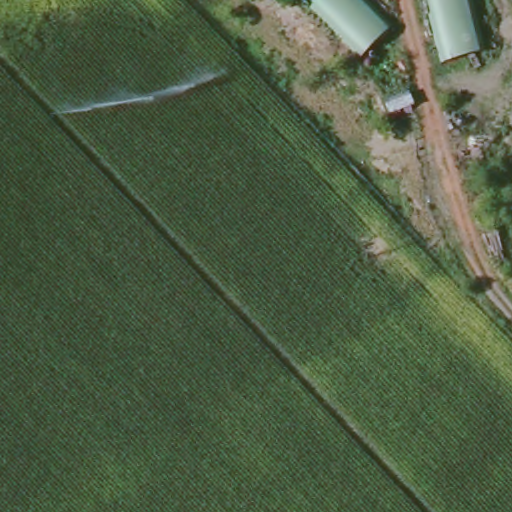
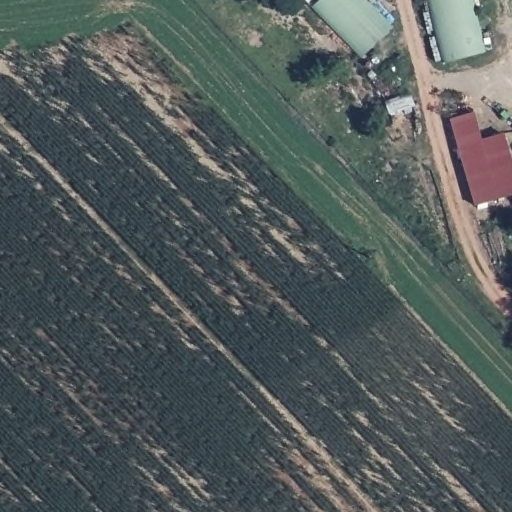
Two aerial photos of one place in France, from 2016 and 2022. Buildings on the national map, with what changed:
unchanged [(394,28),(364,60),(314,9),(322,0),(367,0),(394,28)]
unchanged [(487,55),(442,64),(428,0),(474,0),(487,55)]
new [(471,205),(448,120),(476,112),(482,141),(504,135),(512,171),(512,195),(471,205)]

